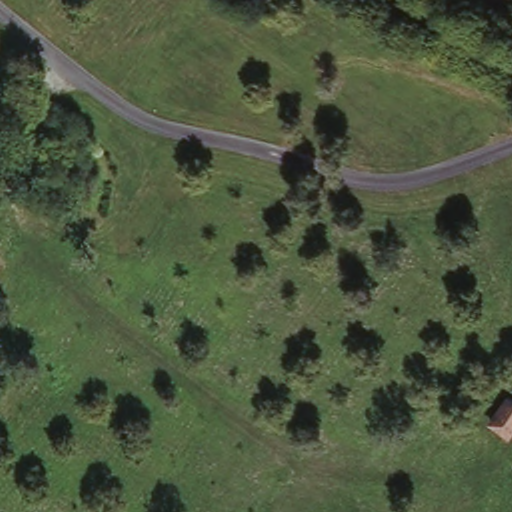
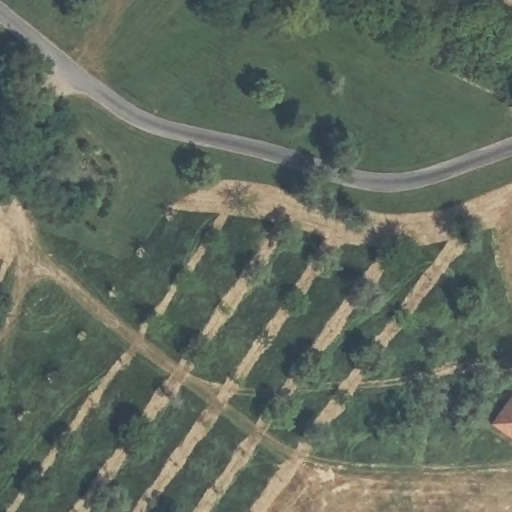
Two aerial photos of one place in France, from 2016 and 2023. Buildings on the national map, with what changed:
unchanged [(501,389),(512,393),(512,431),(487,421),(501,389)]

